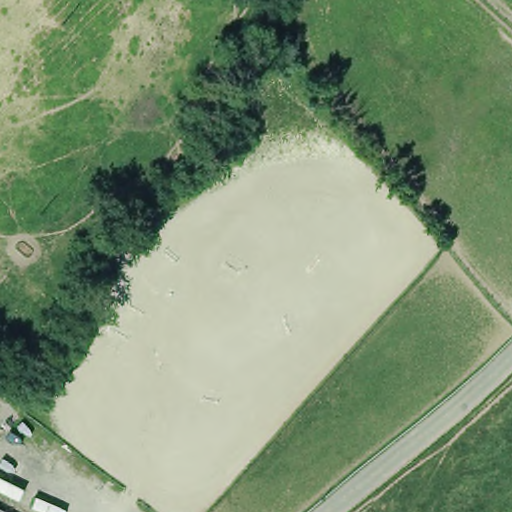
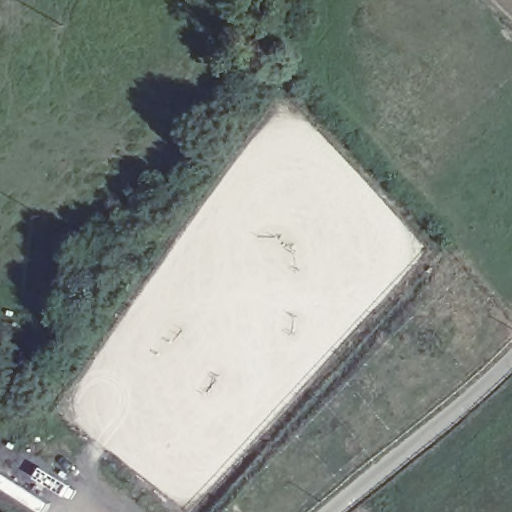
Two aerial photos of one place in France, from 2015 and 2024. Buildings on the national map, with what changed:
unchanged [(3,512),(0,512),(0,510),(3,512)]

